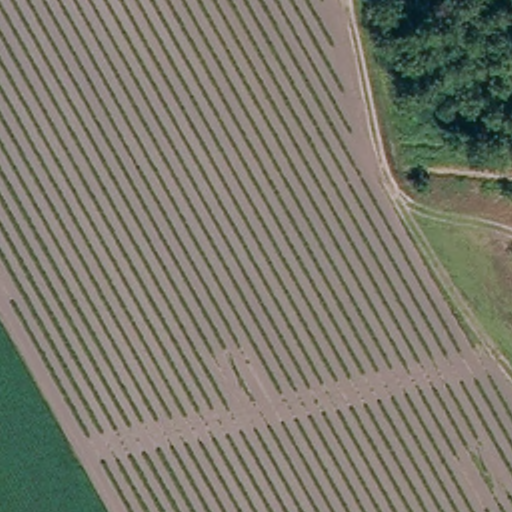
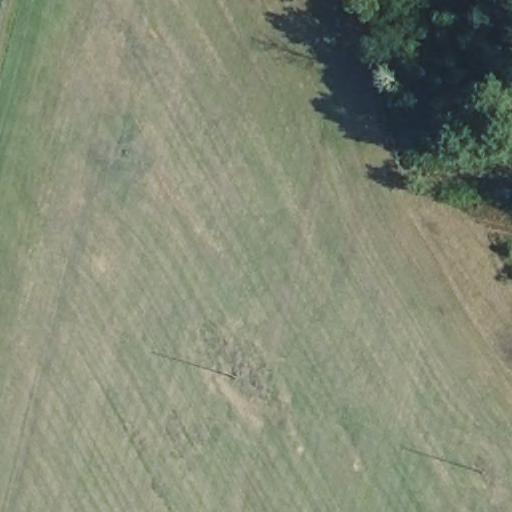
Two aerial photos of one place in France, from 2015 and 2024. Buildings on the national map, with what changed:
[]

